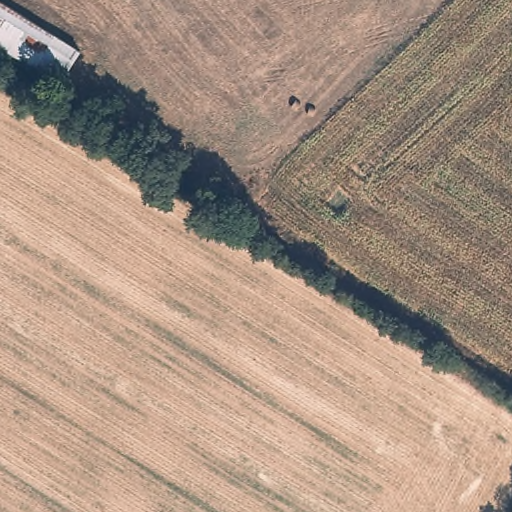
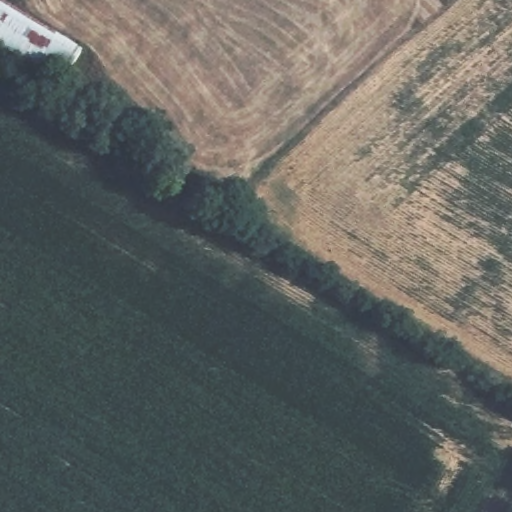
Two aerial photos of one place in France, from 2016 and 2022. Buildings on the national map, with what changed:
unchanged [(61,92),(0,53),(0,11),(81,61),(61,92)]

